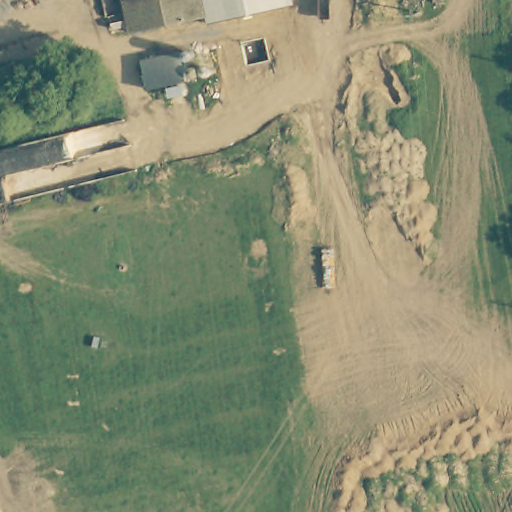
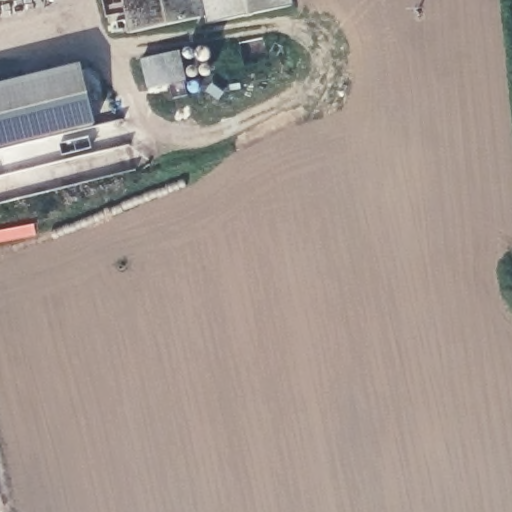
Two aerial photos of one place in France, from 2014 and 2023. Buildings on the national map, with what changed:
unchanged [(0,2),(0,0),(8,0),(0,2)]
unchanged [(202,13),(130,29),(123,0),(199,0),(202,13)]
unchanged [(294,4),(205,25),(202,13),(199,0),(294,0),(294,4)]
unchanged [(149,90),(140,57),(183,47),(189,80),(149,90)]
new [(0,148),(0,84),(82,63),(97,124),(0,148)]

